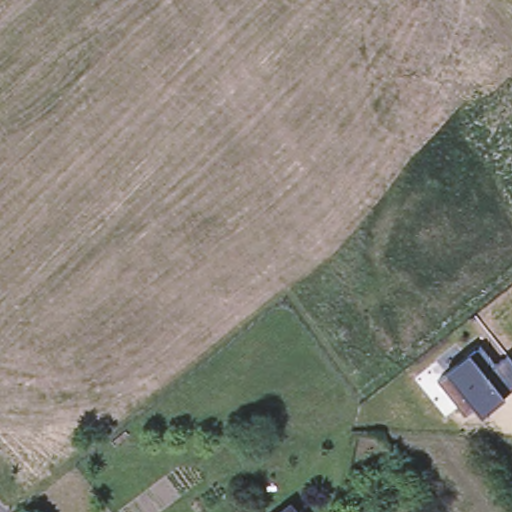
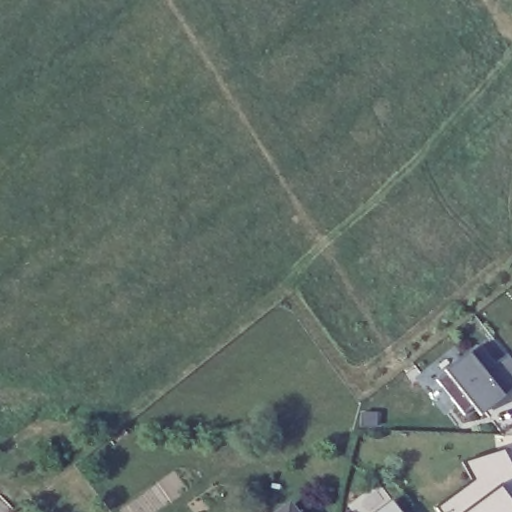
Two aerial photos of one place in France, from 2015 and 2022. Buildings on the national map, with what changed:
unchanged [(512,355),(512,392),(481,417),(474,409),(465,416),(436,379),(482,343),(497,361),(510,352),(512,355)]
new [(506,448),(512,460),(512,512),(445,512),(440,505),(475,479),(464,461),(506,448)]
new [(391,502),(398,512),(377,512),(391,502)]
unchanged [(292,512),(278,512),(287,505),(292,512)]

